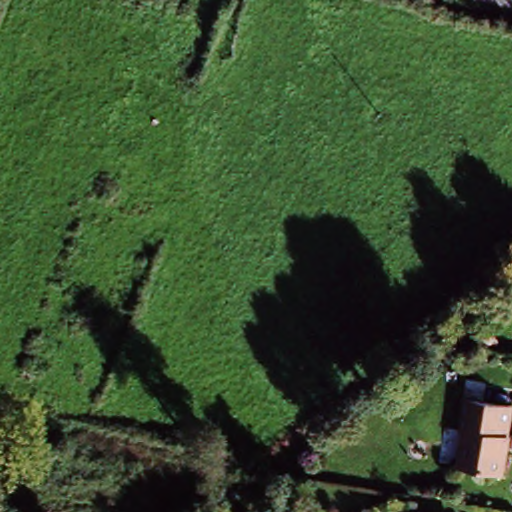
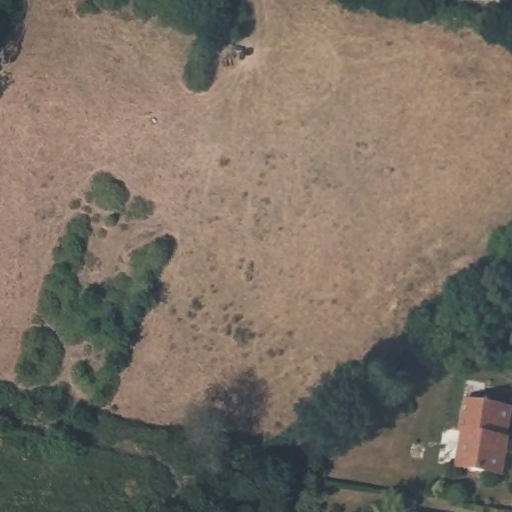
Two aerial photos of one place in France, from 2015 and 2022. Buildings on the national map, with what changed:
unchanged [(505,410),(499,440),(504,441),(502,452),(500,452),(498,457),(500,460),(497,478),(455,471),(461,435),(457,434),(462,403),(505,410)]

